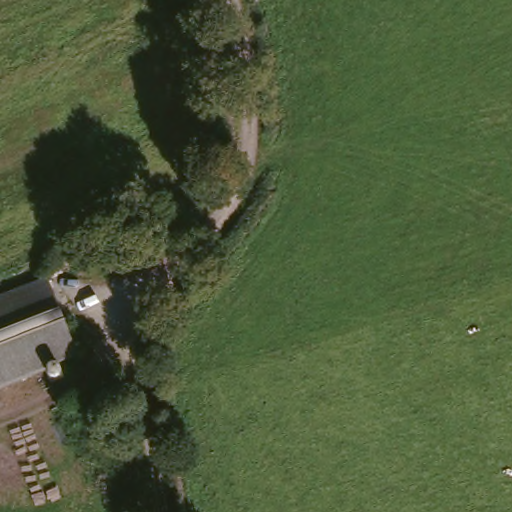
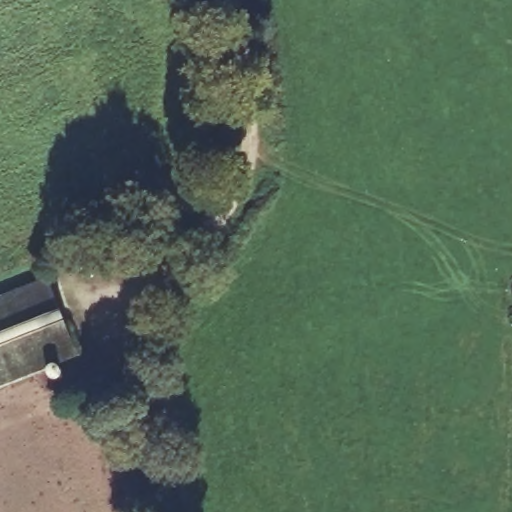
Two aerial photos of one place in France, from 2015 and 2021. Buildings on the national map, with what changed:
unchanged [(0,378),(0,285),(39,268),(76,343),(0,378)]

